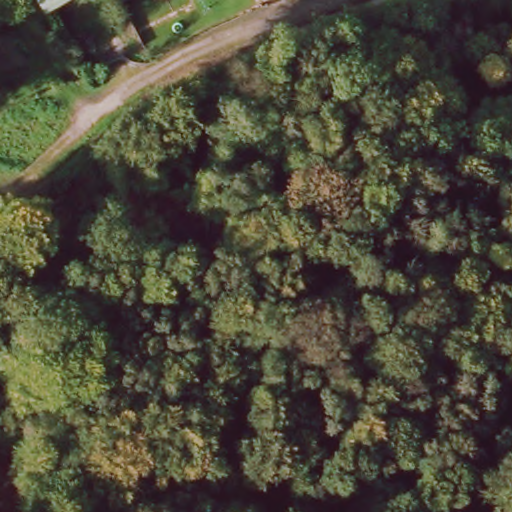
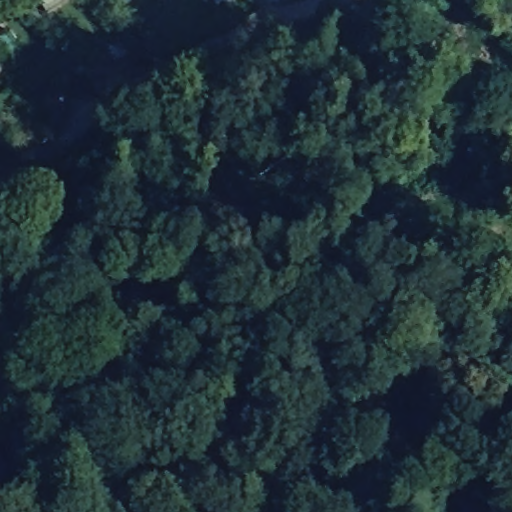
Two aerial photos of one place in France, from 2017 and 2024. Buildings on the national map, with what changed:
unchanged [(42,0),(72,0),(50,14),(42,0)]

